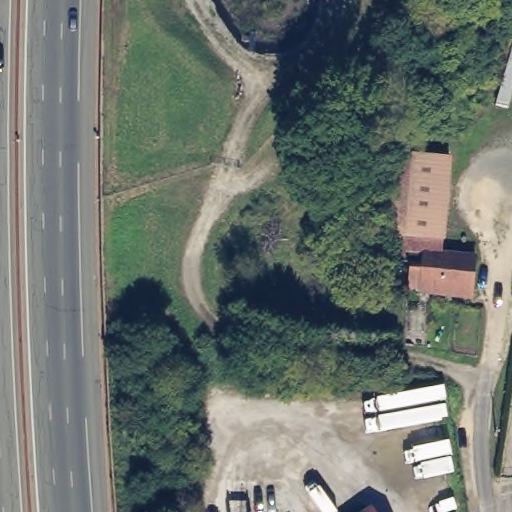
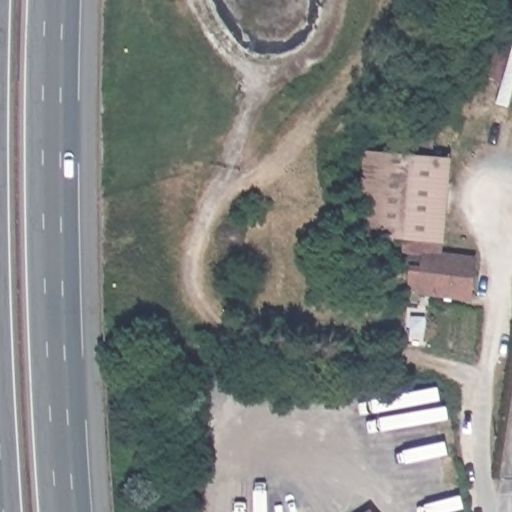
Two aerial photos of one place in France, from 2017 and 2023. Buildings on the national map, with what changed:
unchanged [(445,303),(445,297),(425,294),(425,291),(417,290),(408,240),(362,235),(368,155),(397,158),(398,136),(440,140),(437,161),(452,163),(445,257),(478,262),(474,302),(459,299),(458,304),(445,303)]

